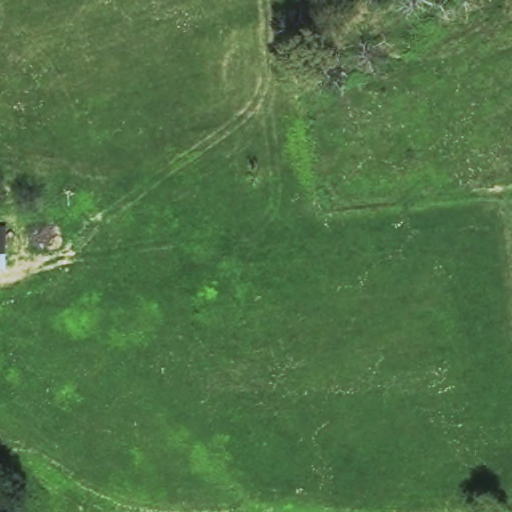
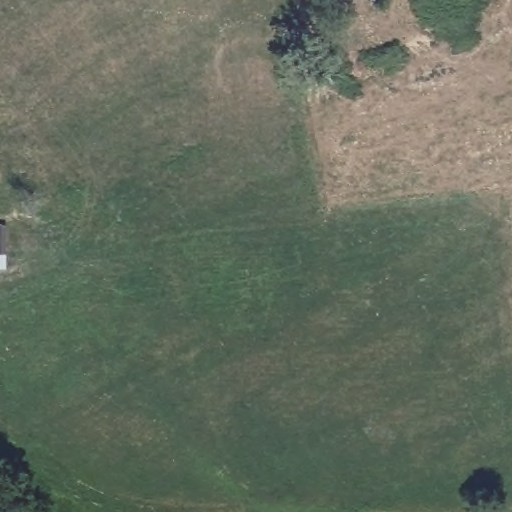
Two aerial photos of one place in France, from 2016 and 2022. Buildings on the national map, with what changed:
unchanged [(7,227),(7,269),(0,269),(0,228),(7,227)]

